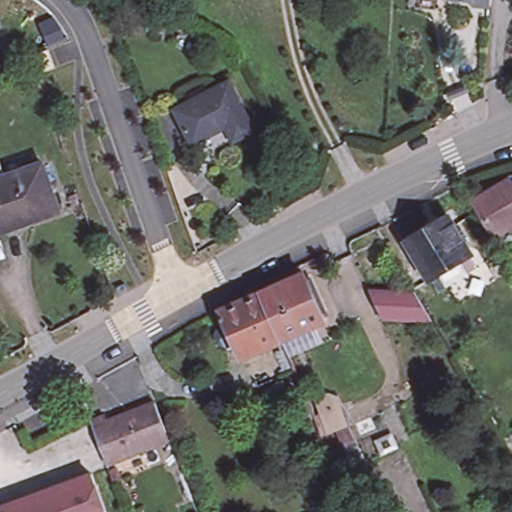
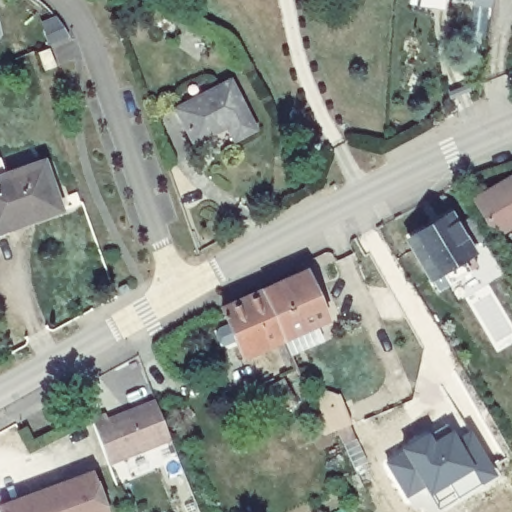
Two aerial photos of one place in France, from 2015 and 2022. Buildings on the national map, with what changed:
unchanged [(477,5),(477,0),(495,0),(494,7),(477,5)]
unchanged [(55,71),(44,75),(38,57),(48,53),(55,71)]
unchanged [(258,131),(236,143),(229,128),(196,146),(178,111),(232,81),(258,131)]
unchanged [(0,236),(0,163),(5,179),(44,165),(61,214),(0,236)]
unchanged [(499,238),(478,202),(512,183),(512,230),(499,238)]
unchanged [(453,219),(456,217),(469,249),(462,254),(468,265),(447,277),(441,264),(429,271),(409,233),(449,210),(453,219)]
unchanged [(304,274),(325,323),(281,343),(260,294),(304,274)]
unchanged [(414,291),(431,321),(381,321),(369,290),(414,291)]
unchanged [(218,346),(215,337),(217,332),(227,327),(220,312),(260,294),(281,343),(242,361),(234,343),(224,348),(218,346)]
unchanged [(298,404),(281,414),(269,391),(287,381),(298,404)]
unchanged [(170,442),(108,468),(90,421),(89,418),(107,410),(110,418),(153,400),(170,442)]
unchanged [(346,447),(340,434),(326,439),(318,419),(348,408),(356,428),(354,428),(359,442),(346,447)]
new [(406,454),(404,450),(432,435),(436,442),(454,431),(459,439),(473,431),(499,477),(483,485),(474,471),(432,496),(427,487),(408,498),(387,464),(406,454)]
unchanged [(0,505),(92,475),(105,512),(0,512),(0,505)]

